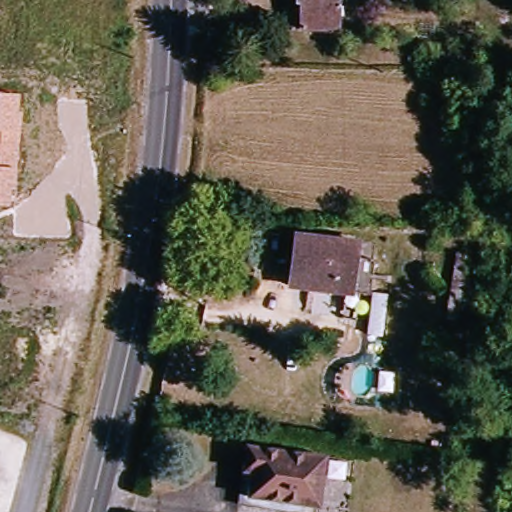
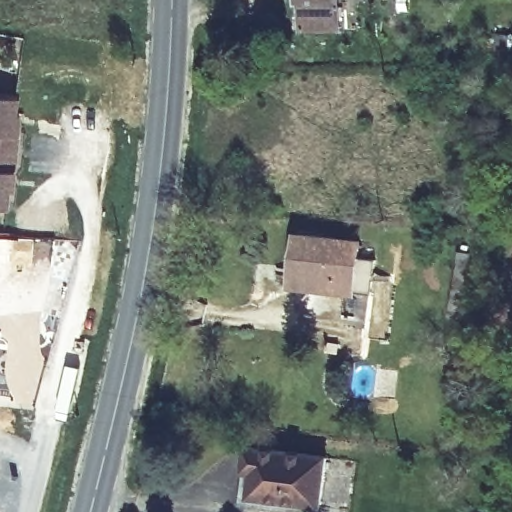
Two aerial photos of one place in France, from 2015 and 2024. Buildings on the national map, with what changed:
unchanged [(313,26),(313,0),(348,0),(348,27),(313,26)]
unchanged [(0,207),(0,92),(22,94),(20,111),(25,112),(18,183),(15,183),(13,208),(0,207)]
unchanged [(372,238),(366,288),(296,281),(301,230),(372,238)]
unchanged [(260,446),(338,453),(331,502),(254,492),(260,446)]

